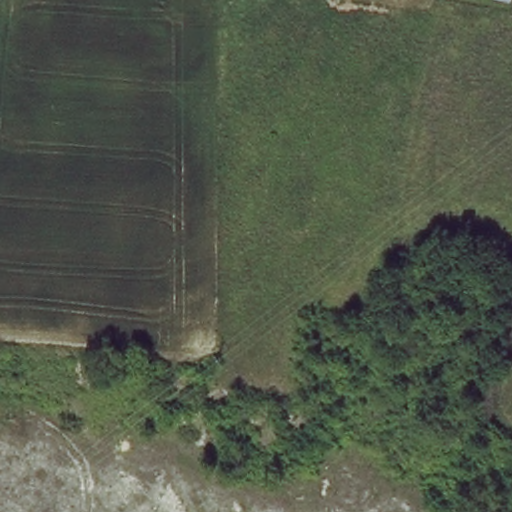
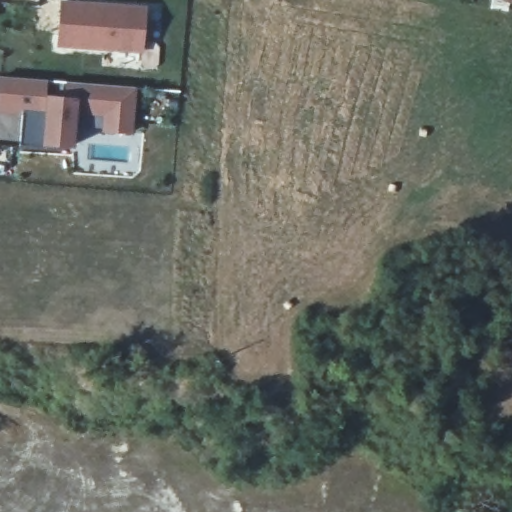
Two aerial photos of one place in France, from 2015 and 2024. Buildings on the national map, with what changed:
new [(59,1),(145,5),(143,52),(56,48),(59,1)]
new [(103,116),(76,114),(75,148),(42,146),(20,146),(22,115),(0,114),(0,76),(48,80),(48,96),(65,97),(66,82),(136,87),(133,134),(101,133),(103,116)]

